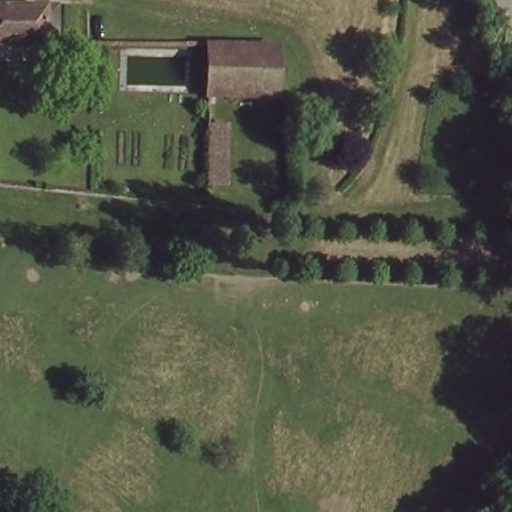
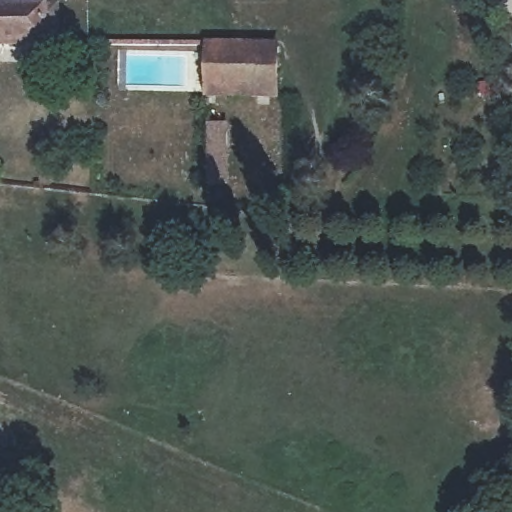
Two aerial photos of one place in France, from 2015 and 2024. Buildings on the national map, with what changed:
unchanged [(46,48),(0,47),(0,14),(46,14),(46,48)]
unchanged [(271,96),(201,94),(203,45),(272,46),(271,96)]

